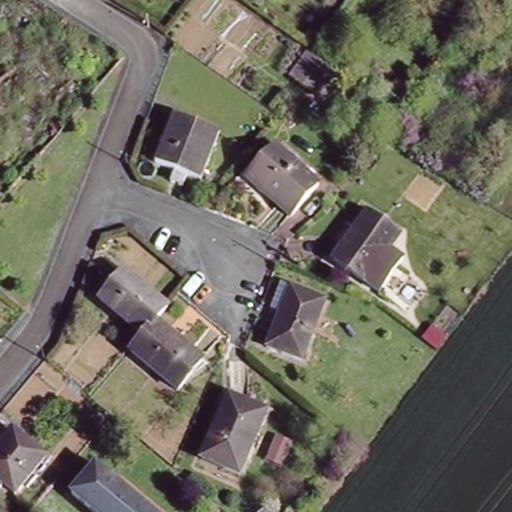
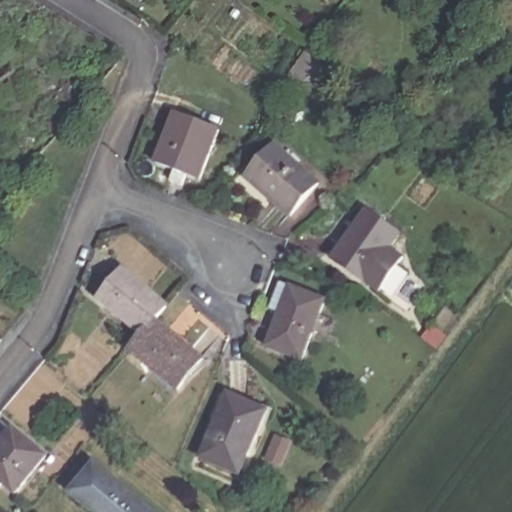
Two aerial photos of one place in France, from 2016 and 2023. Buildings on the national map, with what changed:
unchanged [(298,48),(306,53),(311,57),(327,69),(309,94),(280,72),(298,48)]
unchanged [(171,115),(216,134),(198,179),(152,161),(171,115)]
unchanged [(277,145),(319,184),(289,216),(248,178),(277,145)]
unchanged [(0,205),(0,200),(3,202),(0,205)]
unchanged [(371,216),(403,239),(371,283),(340,261),(371,216)]
unchanged [(98,298),(122,269),(168,306),(156,319),(144,335),(98,298)]
unchanged [(295,283),(327,296),(304,356),(271,344),(295,283)]
unchanged [(0,316),(0,314),(1,314),(0,316)]
unchanged [(144,335),(156,319),(206,359),(184,387),(134,347),(144,335)]
unchanged [(232,394),(269,409),(238,471),(205,455),(232,394)]
unchanged [(49,453),(16,491),(0,477),(0,444),(14,426),(49,453)]
unchanged [(279,428),(283,430),(293,434),(282,457),(269,450),(279,428)]
unchanged [(99,465),(157,512),(99,512),(77,494),(99,465)]

